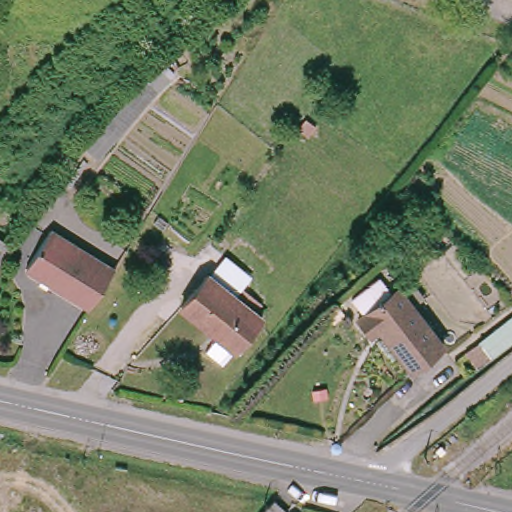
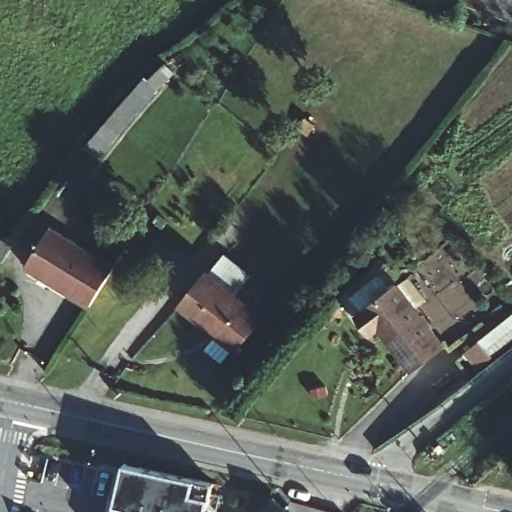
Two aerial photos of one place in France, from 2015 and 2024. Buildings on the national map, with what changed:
unchanged [(121,136),(103,123),(162,62),(174,74),(121,136)]
unchanged [(314,125),(307,135),(296,128),(304,118),(314,125)]
unchanged [(48,229),(113,269),(89,308),(24,267),(48,229)]
unchanged [(14,250),(6,264),(0,273),(0,241),(14,250)]
unchanged [(208,277),(241,307),(248,298),(259,308),(253,317),(261,323),(234,356),(232,354),(220,368),(203,354),(216,340),(180,310),(208,277)]
unchanged [(399,282),(446,342),(414,367),(381,325),(374,331),(359,313),(399,282)]
unchanged [(512,344),(495,357),(483,366),(469,349),(482,339),(512,317),(512,344)]
new [(210,484),(207,512),(115,512),(123,466),(210,484)]
unchanged [(286,512),(263,512),(274,501),(286,512)]

